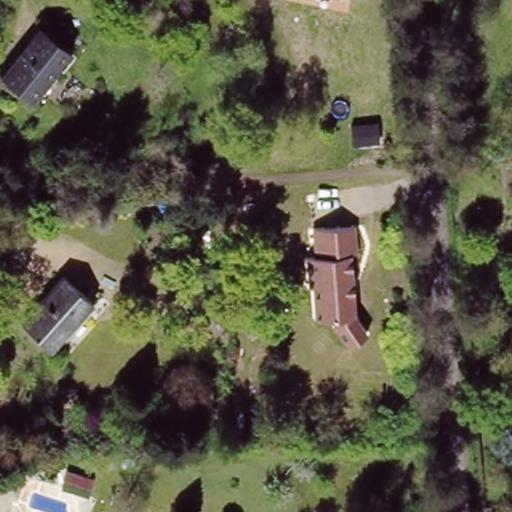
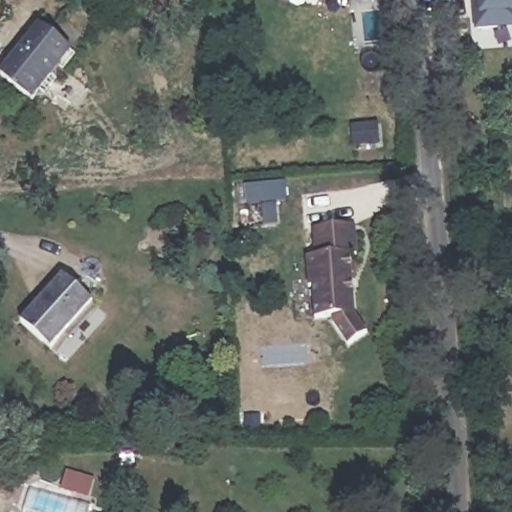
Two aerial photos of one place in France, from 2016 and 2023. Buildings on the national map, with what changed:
new [(512,0),(512,26),(474,29),(472,0),(512,0)]
unchanged [(70,44),(25,92),(0,68),(0,55),(36,15),(70,44)]
unchanged [(356,222),(358,255),(353,256),(357,315),(369,334),(347,350),(323,317),(306,318),(304,257),(309,257),(308,226),(356,222)]
unchanged [(93,301),(48,347),(17,320),(63,271),(93,301)]

